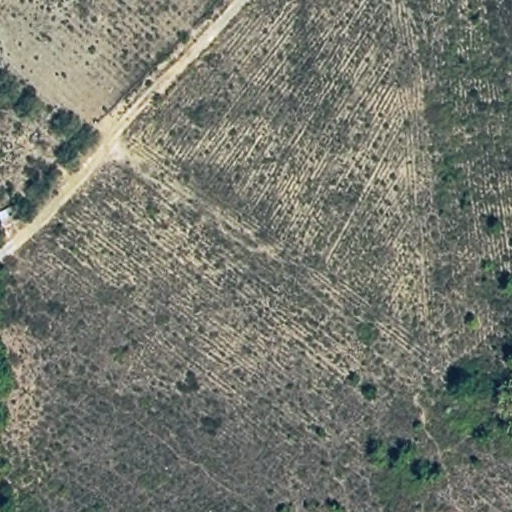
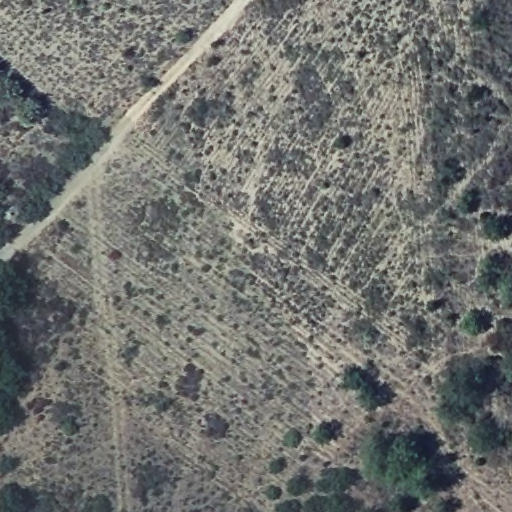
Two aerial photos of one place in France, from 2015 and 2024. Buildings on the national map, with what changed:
unchanged [(11,204),(16,215),(0,224),(0,221),(0,209),(11,204)]

